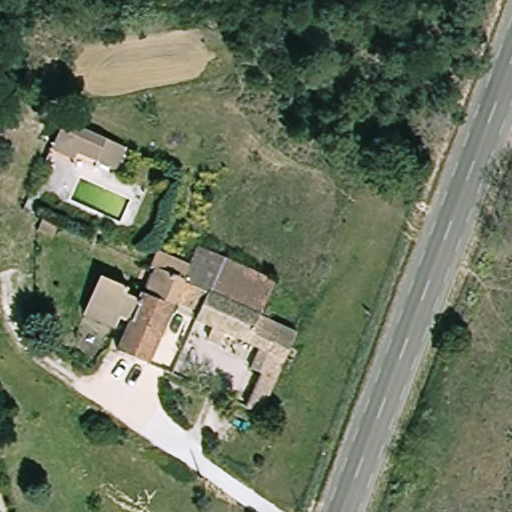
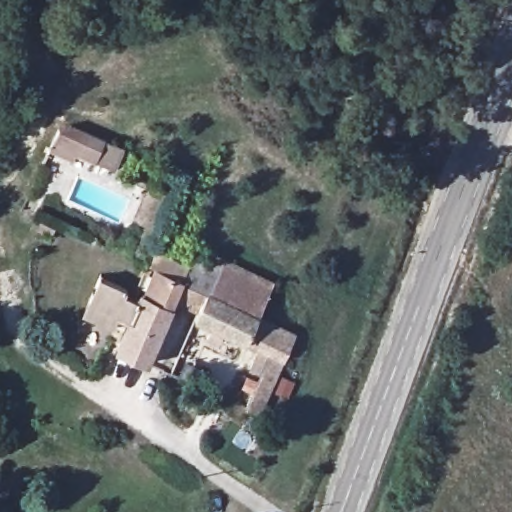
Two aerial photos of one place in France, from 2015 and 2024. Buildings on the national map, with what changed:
unchanged [(65,118),(136,150),(125,172),(87,159),(84,165),(52,150),(65,118)]
unchanged [(101,274),(143,290),(154,267),(146,263),(153,247),(187,262),(195,242),(272,284),(257,321),(291,337),(280,363),(256,352),(192,325),(203,300),(175,288),(143,364),(115,352),(124,332),(83,313),(101,274)]
unchanged [(256,352),(280,363),(259,417),(234,405),(256,352)]

